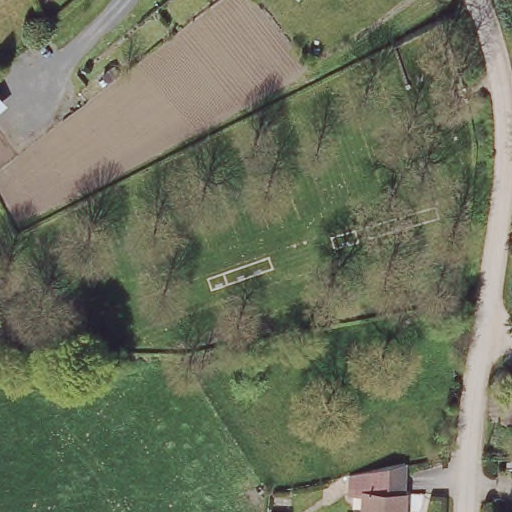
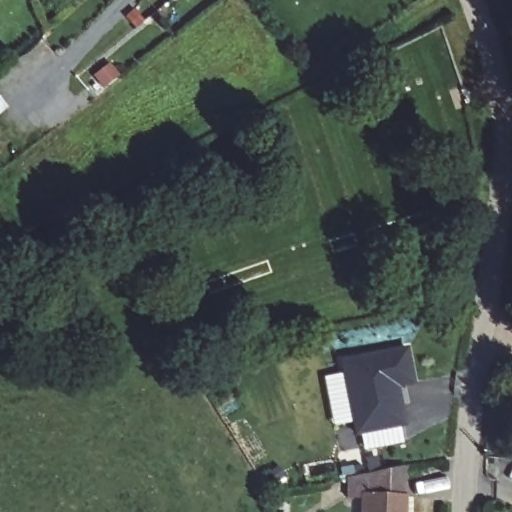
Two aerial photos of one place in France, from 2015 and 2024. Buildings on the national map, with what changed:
new [(417,382),(400,386),(407,425),(354,434),(339,357),(409,345),(417,382)]
unchanged [(370,501),(360,501),(354,501),(355,480),(410,470),(408,503),(370,501)]
unchanged [(408,503),(408,512),(369,512),(370,501),(408,503)]

